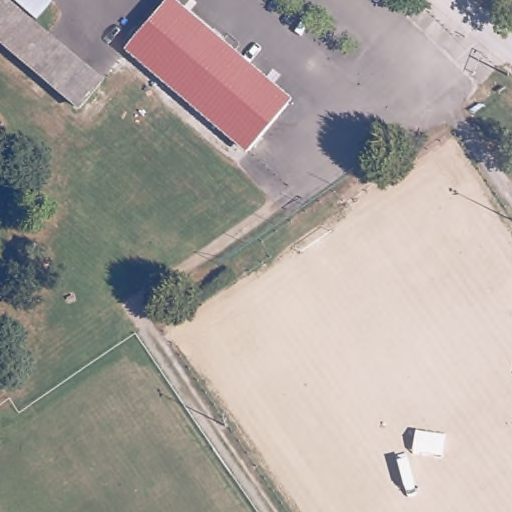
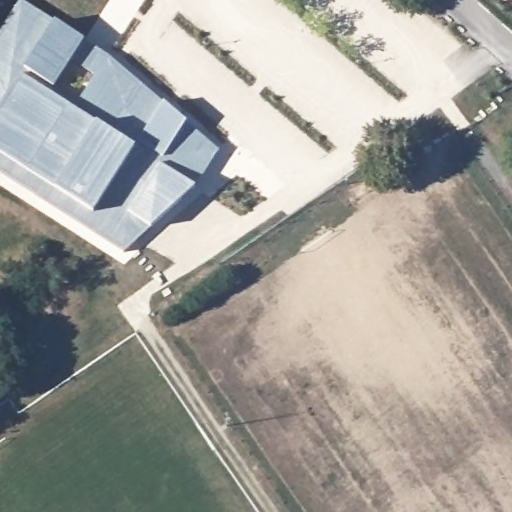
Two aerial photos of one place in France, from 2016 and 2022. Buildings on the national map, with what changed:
new [(183,125),(217,150),(195,177),(189,185),(192,188),(148,227),(122,252),(36,195),(44,182),(0,154),(0,30),(19,0),(56,20),(82,40),(108,58),(162,104),(185,123),(183,125)]
demolished [(248,155),(129,53),(174,0),(292,104),(248,155)]
demolished [(82,110),(0,49),(0,7),(102,83),(82,110)]
new [(0,154),(44,182),(36,195),(0,173),(0,154)]
new [(189,185),(195,177),(198,179),(192,188),(189,185)]

